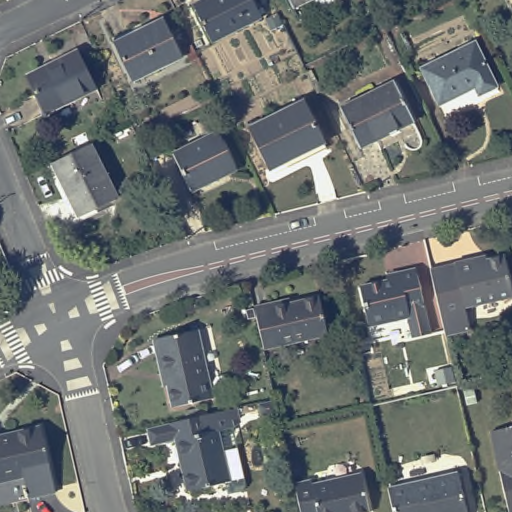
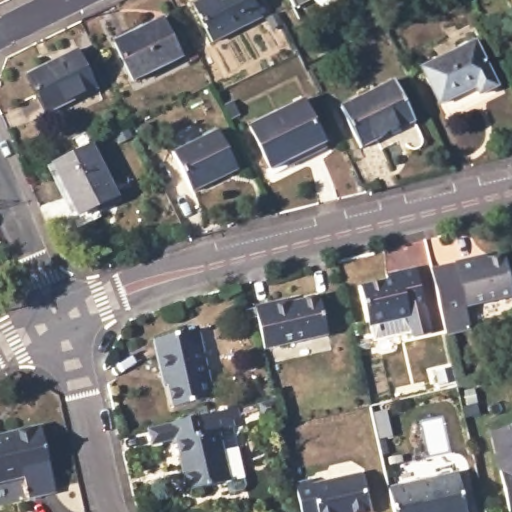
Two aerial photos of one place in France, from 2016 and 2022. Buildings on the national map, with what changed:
unchanged [(253,0),(261,16),(211,41),(193,4),(201,0),(253,0)]
unchanged [(290,0),(308,0),(294,8),(290,0)]
unchanged [(312,0),(338,0),(322,8),(312,0)]
unchanged [(163,18),(182,55),(132,80),(113,42),(163,18)]
unchanged [(474,41),(496,86),(478,95),(473,86),(440,104),(422,68),(474,41)]
unchanged [(78,49),(97,87),(44,113),(25,74),(78,49)]
unchanged [(394,85),(414,126),(360,153),(340,111),(394,85)]
unchanged [(303,99),(324,141),(271,168),(250,126),(303,99)]
unchanged [(222,134),(241,173),(198,195),(178,157),(222,134)]
unchanged [(75,209),(51,162),(91,143),(117,196),(95,207),(78,215),(75,209)]
unchanged [(446,330),(442,313),(439,297),(431,264),(456,258),(456,257),(474,253),(476,257),(505,250),(512,279),(512,290),(466,302),(467,307),(471,324),(446,330)]
unchanged [(401,266),(400,262),(415,258),(431,322),(413,326),(408,305),(369,315),(361,276),(401,266)]
unchanged [(290,298),(291,302),(319,295),(328,334),(276,347),(264,349),(254,305),(290,298)]
unchanged [(161,373),(154,339),(198,329),(214,398),(182,404),(177,383),(164,385),(161,373)]
unchanged [(236,409),(253,484),(250,488),(236,492),(233,482),(192,491),(181,439),(177,439),(173,423),(236,409)]
unchanged [(55,492),(28,498),(23,477),(0,481),(0,436),(41,428),(55,492)]
unchanged [(492,436),(512,431),(512,512),(509,512),(492,436)]
unchanged [(388,487),(459,472),(467,512),(394,512),(388,487)]
unchanged [(315,483),(317,489),(366,478),(374,512),(304,512),(299,486),(315,483)]

